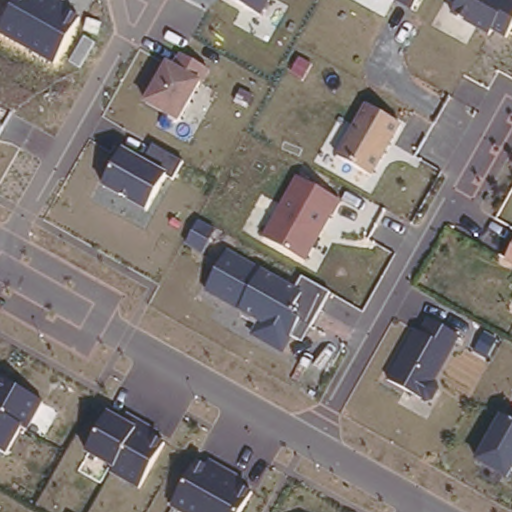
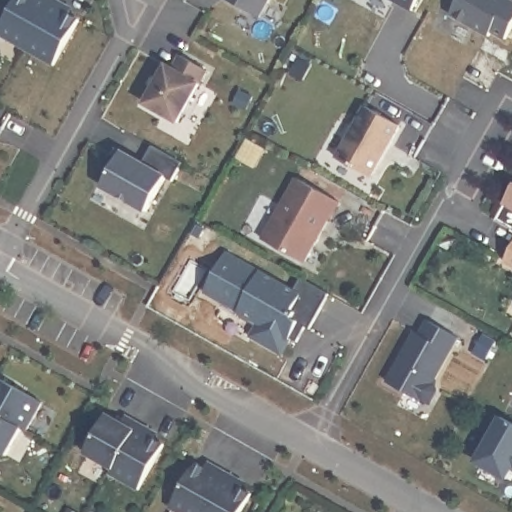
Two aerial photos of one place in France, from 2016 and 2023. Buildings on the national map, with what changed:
unchanged [(58,0),(72,8),(71,12),(80,18),(54,65),(0,33),(0,27),(17,0),(58,0)]
unchanged [(272,0),(262,17),(231,0),(272,0)]
unchanged [(402,0),(416,0),(413,6),(402,0)]
unchanged [(452,12),(458,0),(512,0),(512,23),(504,39),(452,12)]
unchanged [(181,123),(144,102),(167,62),(172,65),(180,52),(209,69),(201,84),(181,123)]
unchanged [(400,123),(372,175),(337,156),(364,103),(365,101),(400,123)]
unchanged [(169,175),(148,211),(101,186),(123,147),(144,158),(152,143),(184,161),(175,179),(169,175)]
unchanged [(338,200),(306,262),(263,240),(295,175),(338,200)]
unchanged [(512,245),(512,264),(505,260),(512,245)]
unchanged [(296,287),(301,277),(327,291),(314,325),(301,317),(284,356),(254,340),(263,319),(206,292),(225,250),(296,287)]
unchanged [(460,334),(428,401),(387,382),(420,314),(460,334)]
unchanged [(44,402),(28,431),(23,428),(6,454),(0,450),(0,376),(44,402)]
unchanged [(114,468),(85,451),(110,410),(125,419),(128,414),(156,429),(153,436),(165,444),(137,489),(110,473),(114,468)]
unchanged [(512,472),(508,477),(476,459),(495,416),(512,423),(512,472)]
unchanged [(171,507),(200,459),(207,464),(210,459),(242,477),(240,481),(252,489),(241,512),(180,512),(171,507)]

